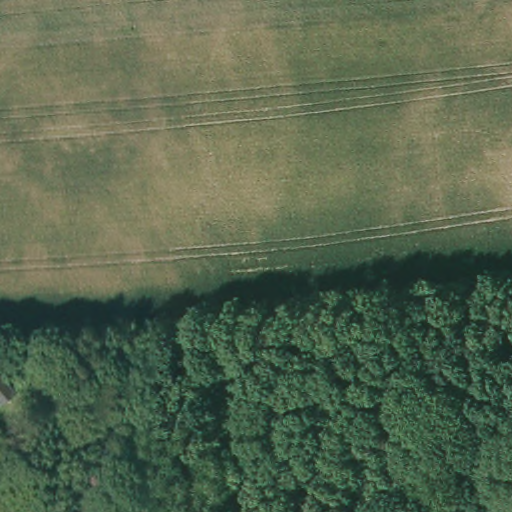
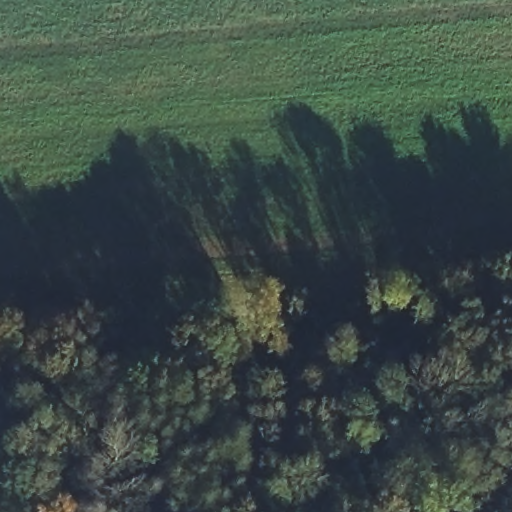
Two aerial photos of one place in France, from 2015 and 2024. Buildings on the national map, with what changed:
unchanged [(0,403),(0,381),(12,389),(0,403)]

